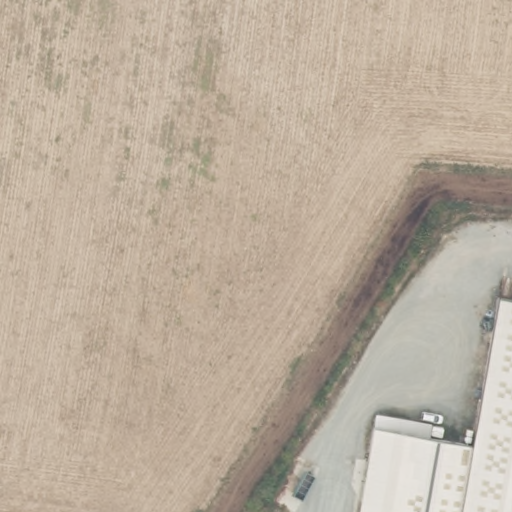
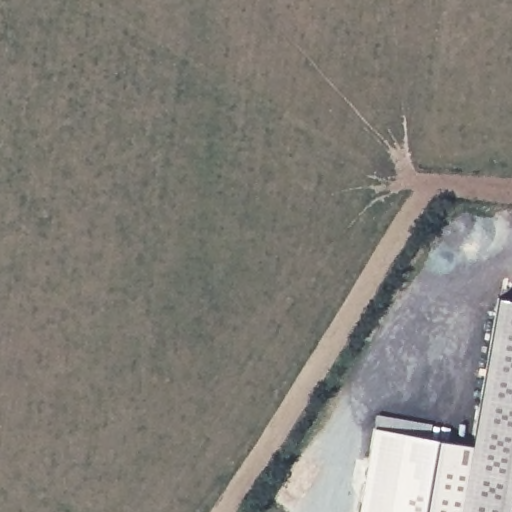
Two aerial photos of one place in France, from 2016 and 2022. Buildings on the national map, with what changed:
unchanged [(373,427),(471,444),(496,295),(512,297),(512,512),(358,512),(373,427)]

